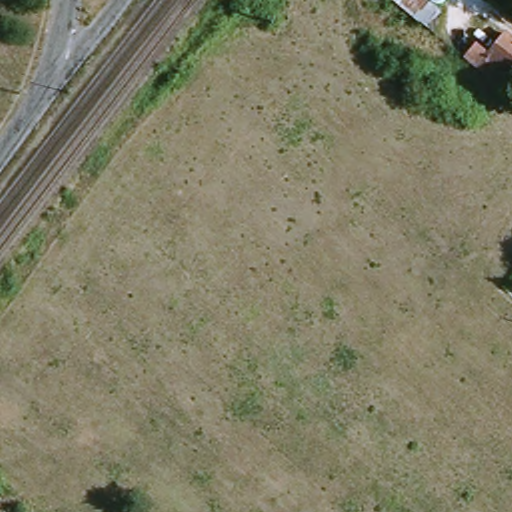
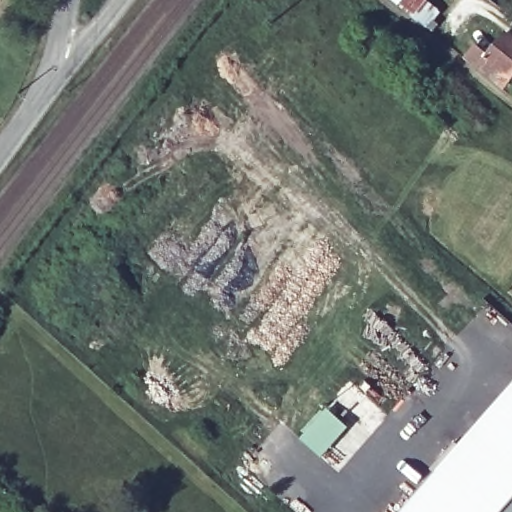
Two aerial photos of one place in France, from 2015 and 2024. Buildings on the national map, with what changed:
unchanged [(444,9),(440,17),(447,25),(438,33),(397,0),(435,0),(444,9)]
unchanged [(512,30),(512,83),(506,90),(481,70),(511,29),(512,30)]
new [(512,512),(401,512),(512,386),(512,512)]

